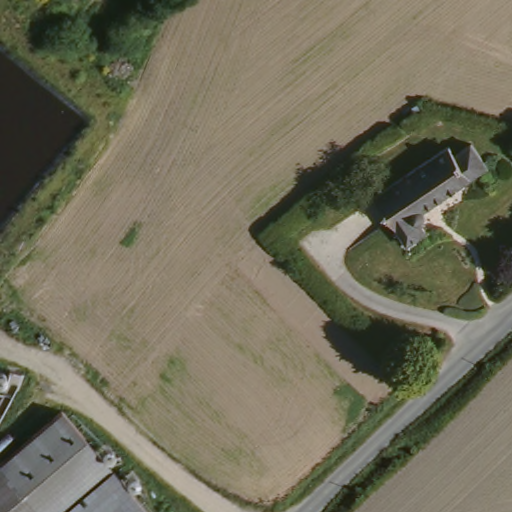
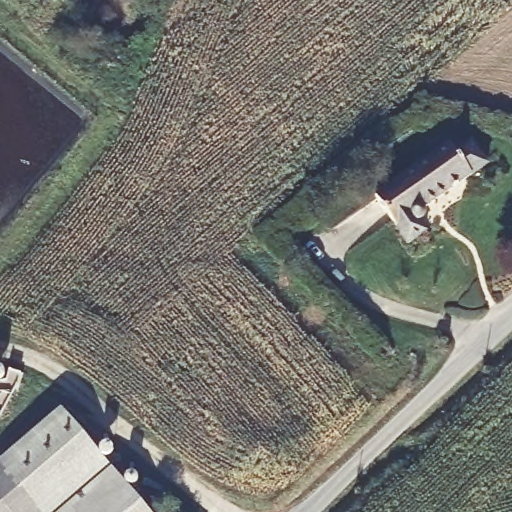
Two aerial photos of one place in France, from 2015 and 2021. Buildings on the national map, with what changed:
unchanged [(375,195),(445,142),(453,153),(466,143),(482,164),(425,207),(428,212),(420,219),(427,229),(410,243),(380,204),(375,195)]
unchanged [(39,512),(0,467),(0,461),(58,404),(154,512),(39,512)]
unchanged [(39,512),(0,512),(0,467),(39,512)]

